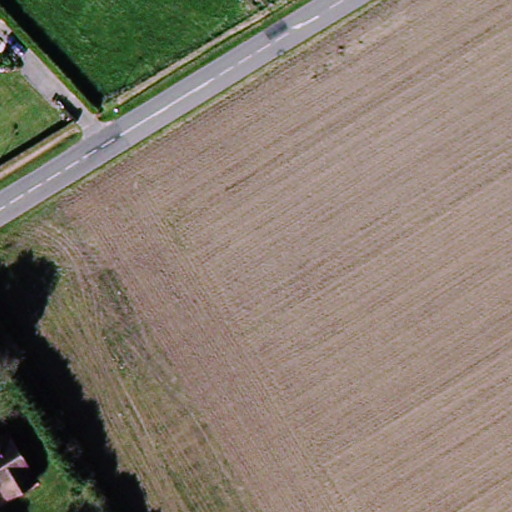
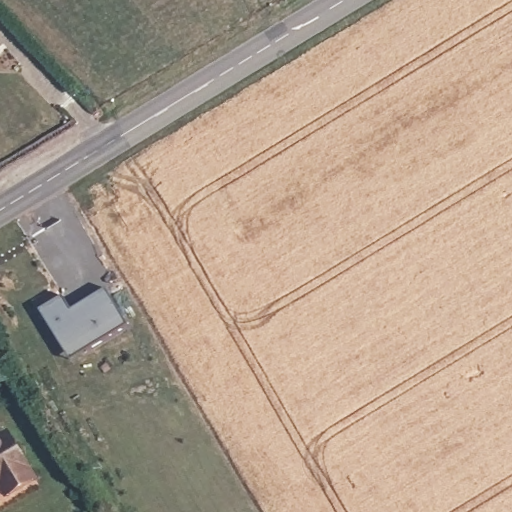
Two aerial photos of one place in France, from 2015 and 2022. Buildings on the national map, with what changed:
new [(62,297),(72,311),(107,290),(127,325),(71,360),(41,311),(62,297)]
unchanged [(0,492),(0,442),(12,435),(39,482),(11,500),(4,490),(0,492)]

